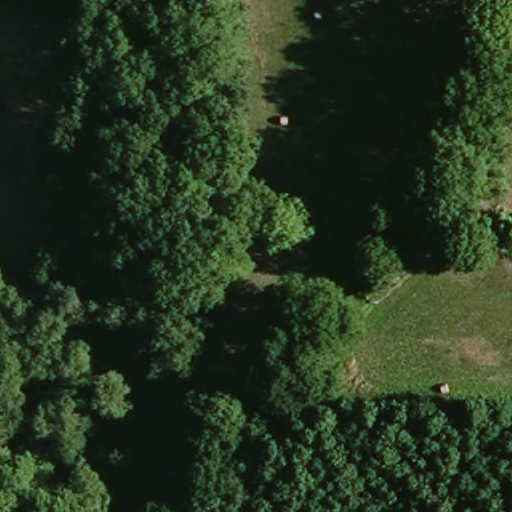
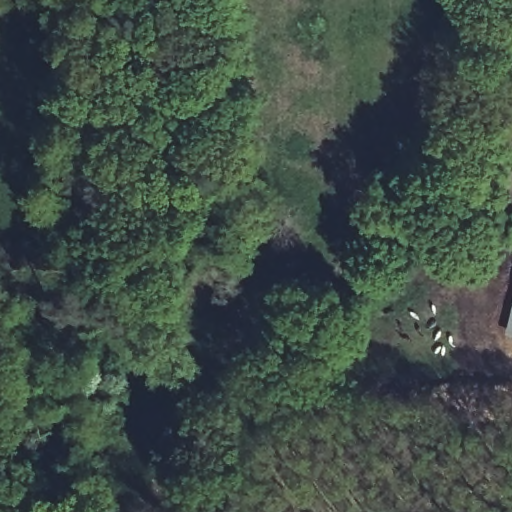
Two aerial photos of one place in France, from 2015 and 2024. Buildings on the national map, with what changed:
new [(512,308),(512,336),(505,335),(512,308)]

